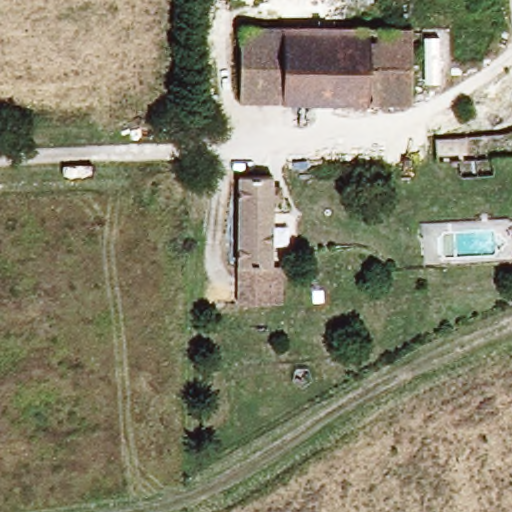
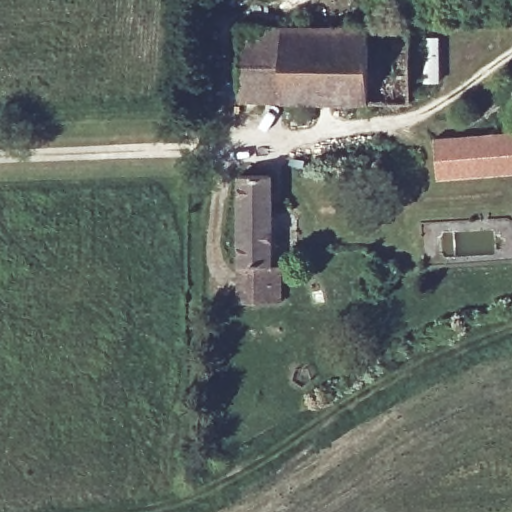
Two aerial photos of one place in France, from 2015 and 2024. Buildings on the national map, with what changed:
unchanged [(238,101),(239,26),(280,26),(280,102),(238,101)]
unchanged [(280,26),(410,27),(409,102),(280,102),(280,26)]
new [(424,56),(428,55),(426,45),(422,46),(421,37),(437,35),(443,80),(428,82),(424,56)]
new [(512,130),(512,173),(436,181),(433,137),(512,130)]
unchanged [(271,302),(237,302),(239,174),(272,175),(271,265),(279,265),(279,302),(271,302)]

